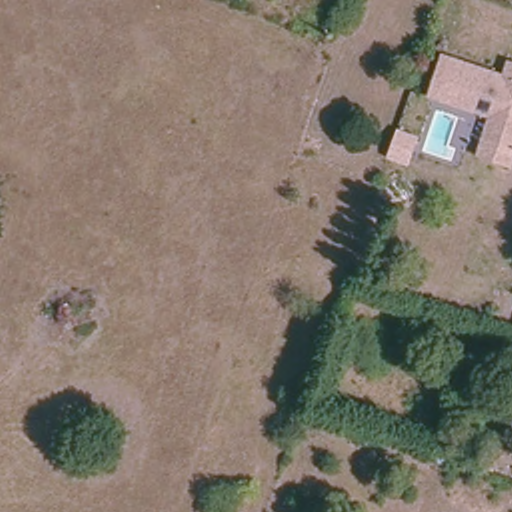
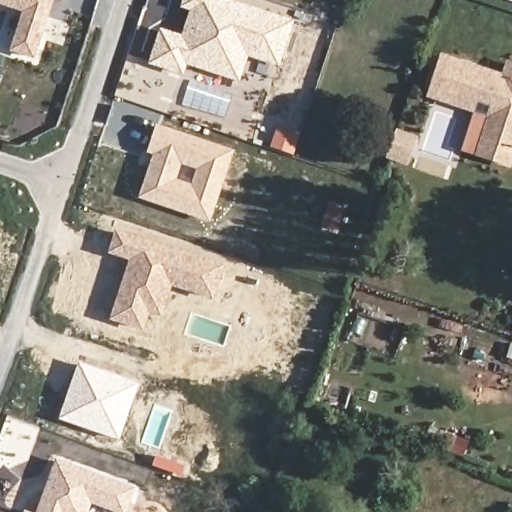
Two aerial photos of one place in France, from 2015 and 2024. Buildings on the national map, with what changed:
new [(21,12),(0,5),(0,0),(52,0),(35,60),(10,51),(21,12)]
new [(64,1),(60,0),(64,0),(64,1)]
new [(189,11),(179,8),(182,0),(231,0),(295,21),(280,65),(246,56),(239,81),(187,67),(182,76),(148,66),(159,29),(182,35),(189,11)]
unchanged [(475,155),(480,140),(489,116),(427,95),(439,57),(502,79),(507,64),(512,66),(512,149),(511,151),(506,165),(475,155)]
new [(153,157),(145,154),(156,124),(235,151),(210,222),(139,198),(153,157)]
new [(128,261),(107,254),(115,229),(224,264),(214,300),(172,287),(162,317),(149,313),(144,330),(109,320),(128,261)]
new [(79,363),(139,385),(119,440),(59,419),(79,363)]
new [(136,488),(127,512),(111,512),(91,505),(89,512),(36,512),(56,459),(136,488)]
new [(33,512),(22,512),(24,509),(33,512)]

